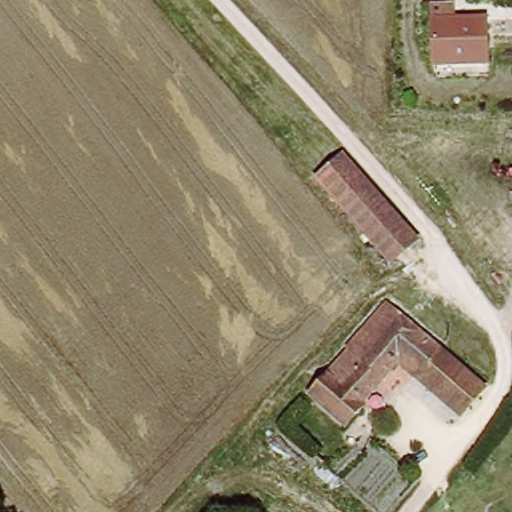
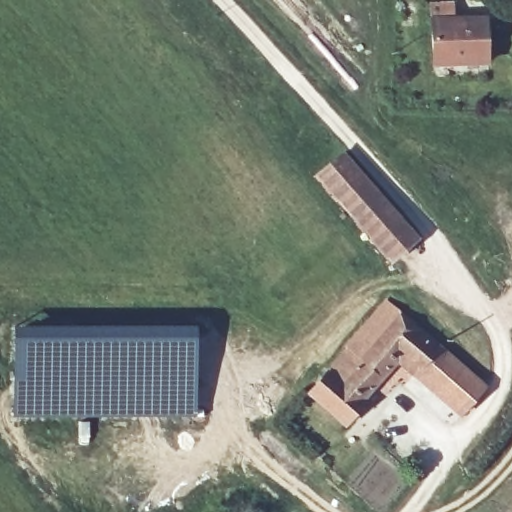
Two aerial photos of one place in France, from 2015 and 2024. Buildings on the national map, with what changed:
unchanged [(430,5),(453,5),(452,20),(485,20),(486,63),(433,64),(430,5)]
unchanged [(411,248),(392,265),(311,171),(333,152),(339,147),(420,240),(411,248)]
unchanged [(386,301),(488,390),(463,416),(399,362),(345,425),(308,392),(386,301)]
new [(12,327),(193,326),(195,416),(13,416),(12,327)]

